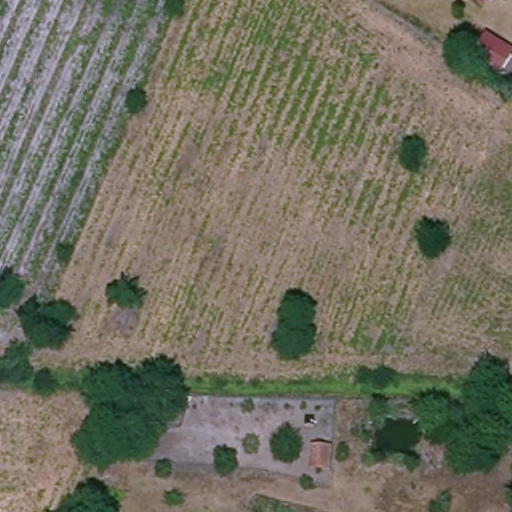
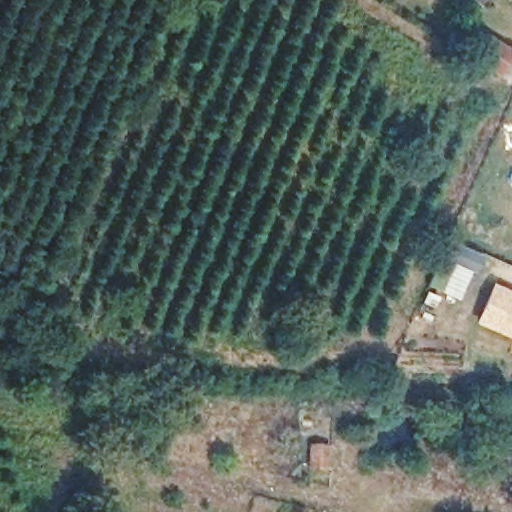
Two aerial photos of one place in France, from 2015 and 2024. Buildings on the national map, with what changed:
unchanged [(475,51),(483,39),(510,56),(502,68),(496,77),(469,60),(475,51)]
new [(455,243),(482,256),(467,285),(462,283),(466,272),(447,262),(455,243)]
new [(493,282),(512,290),(512,339),(474,322),(493,282)]

